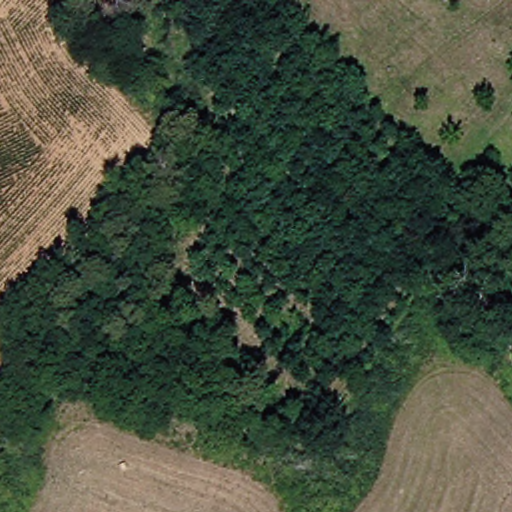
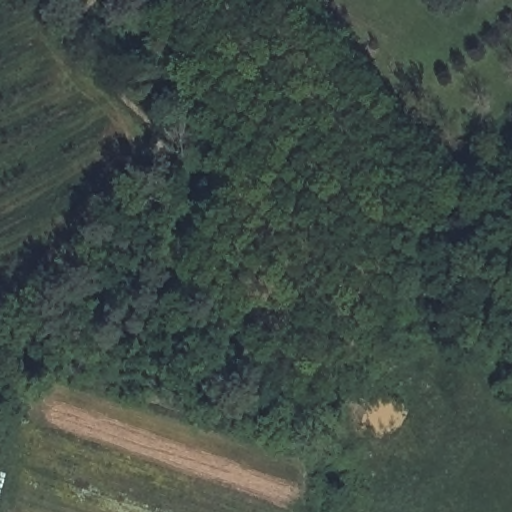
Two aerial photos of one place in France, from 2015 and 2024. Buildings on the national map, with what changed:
[]

